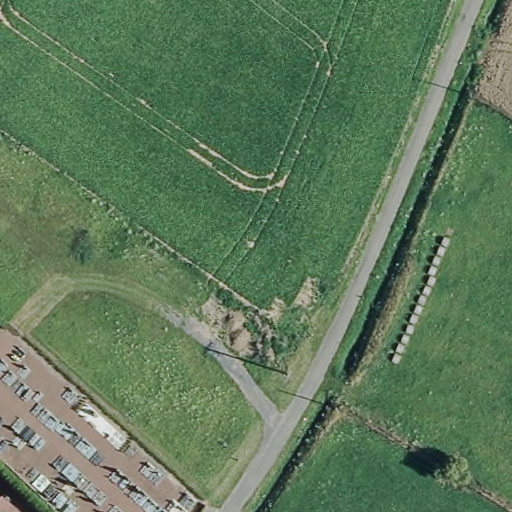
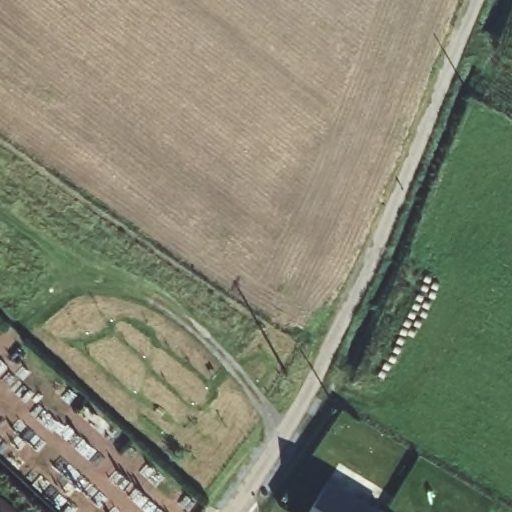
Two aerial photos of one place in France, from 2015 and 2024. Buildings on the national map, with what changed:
new [(395,498),(386,512),(311,512),(338,464),(395,498)]
unchanged [(24,512),(0,512),(0,500),(5,495),(24,512)]

